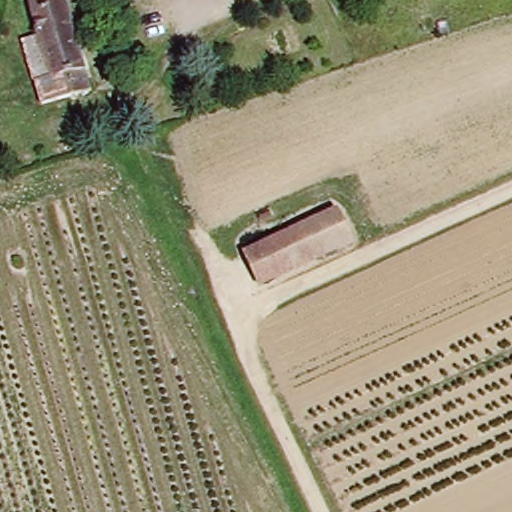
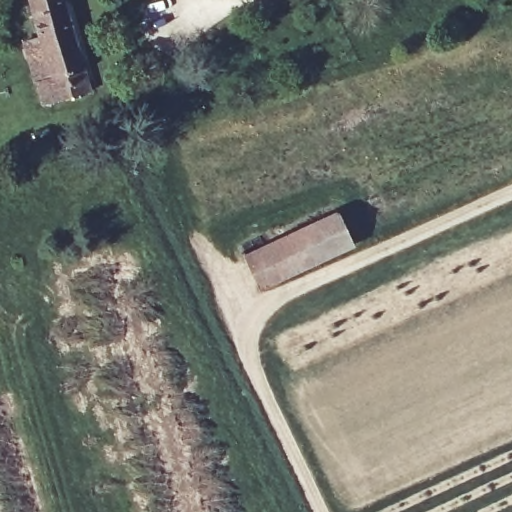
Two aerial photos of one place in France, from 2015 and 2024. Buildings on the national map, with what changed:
unchanged [(28,0),(63,0),(88,90),(42,106),(35,85),(24,50),(41,46),(28,0)]
unchanged [(263,289),(247,254),(340,211),(355,246),(263,289)]

